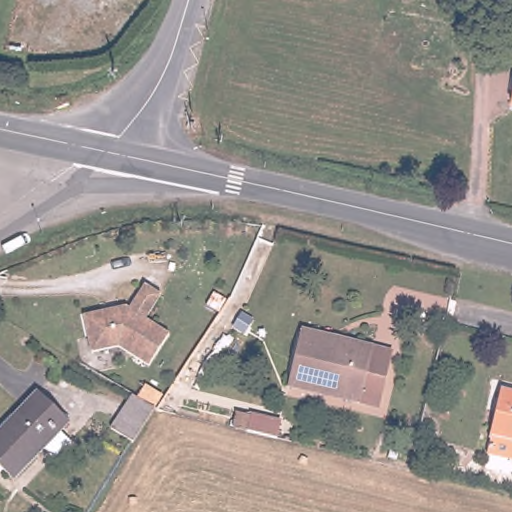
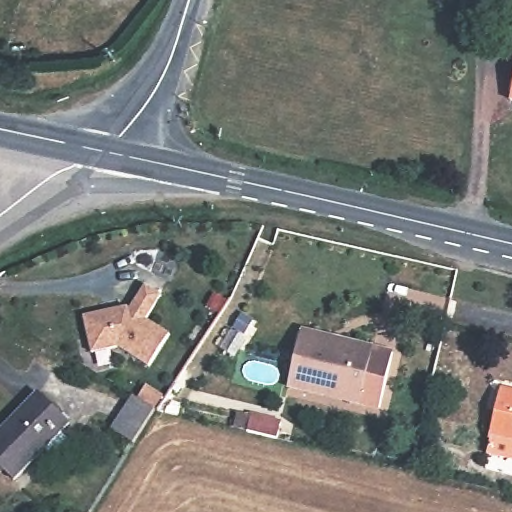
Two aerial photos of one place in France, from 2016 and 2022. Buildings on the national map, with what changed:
unchanged [(498,0),(512,0),(512,2),(498,1),(498,0)]
unchanged [(512,93),(512,100),(510,99),(512,93)]
unchanged [(161,295),(145,319),(169,334),(149,366),(119,346),(92,353),(84,316),(110,310),(114,313),(120,312),(119,308),(126,306),(130,309),(145,285),(161,295)]
unchanged [(291,374),(301,330),(371,347),(392,352),(379,407),(343,399),(288,386),(291,374)]
unchanged [(490,438),(489,437),(500,389),(512,392),(512,459),(487,453),(490,438)]
unchanged [(60,459),(49,448),(19,479),(0,460),(0,436),(42,392),(74,423),(66,431),(76,442),(60,459)]
unchanged [(133,442),(112,428),(133,394),(155,408),(133,442)]
unchanged [(246,415),(276,423),(272,438),(242,431),(246,415)]

